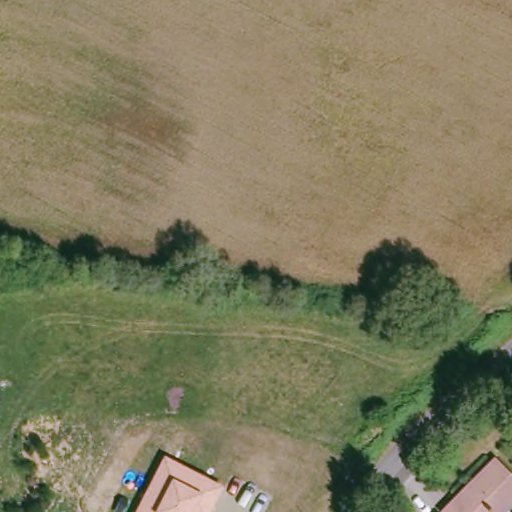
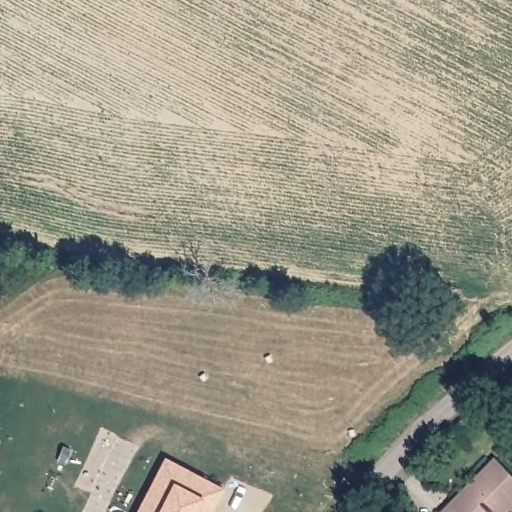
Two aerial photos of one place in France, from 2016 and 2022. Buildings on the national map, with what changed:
unchanged [(210,512),(134,512),(164,453),(224,482),(210,512)]
unchanged [(512,509),(509,512),(456,512),(497,460),(512,471),(512,509)]

